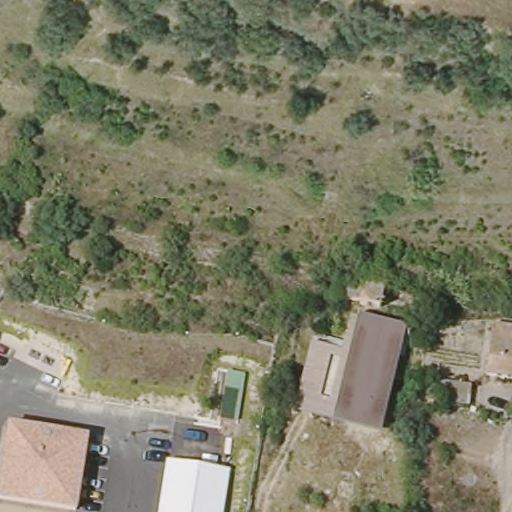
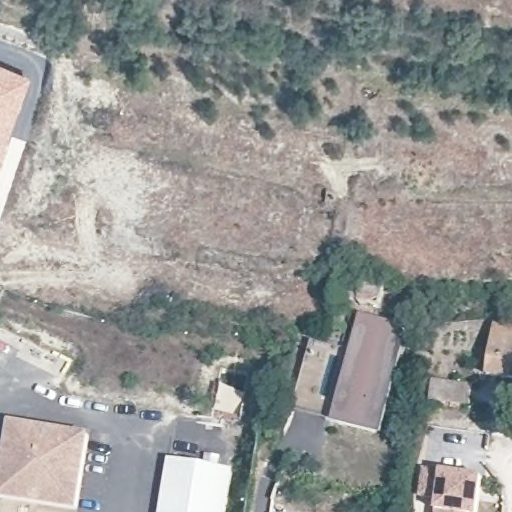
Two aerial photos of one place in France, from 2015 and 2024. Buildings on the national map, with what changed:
new [(27,84),(0,147),(0,72),(27,84)]
unchanged [(384,297),(381,316),(349,312),(346,306),(335,305),(336,296),(339,277),(380,286),(382,296),(384,297)]
unchanged [(294,413),(311,343),(340,350),(350,312),(358,315),(409,326),(381,437),(333,425),(294,413)]
unchanged [(512,366),(512,383),(489,377),(498,327),(512,329),(512,353),(509,365),(512,366)]
unchanged [(468,407),(432,400),(434,381),(471,387),(468,407)]
unchanged [(8,425),(92,436),(77,512),(51,512),(0,505),(0,471),(8,425)]
unchanged [(166,460),(233,468),(226,512),(158,512),(166,460)]
new [(479,512),(436,512),(438,499),(418,498),(422,470),(442,471),(484,476),(479,512)]

